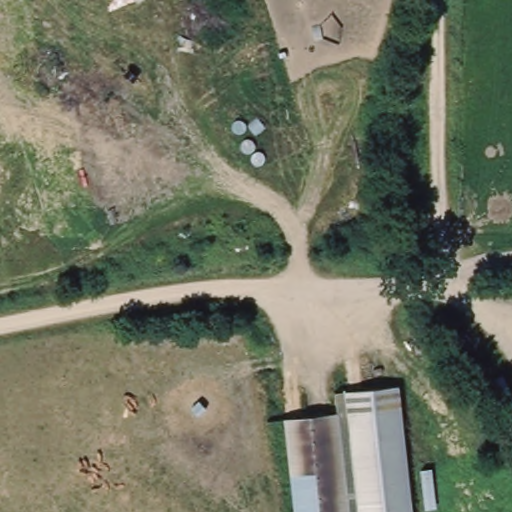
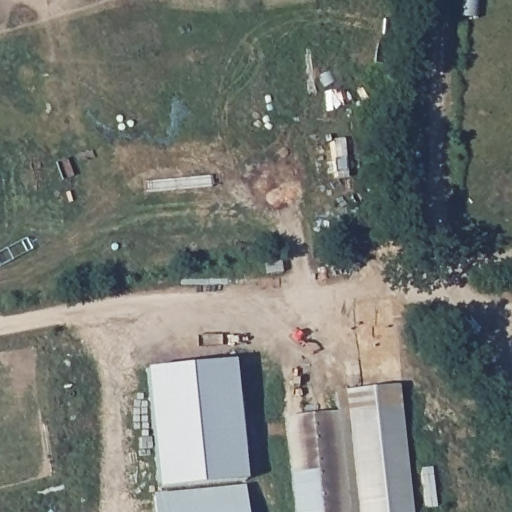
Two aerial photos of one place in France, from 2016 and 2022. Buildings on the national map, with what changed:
new [(233,360),(245,480),(159,488),(146,369),(233,360)]
unchanged [(321,409),(338,408),(337,398),(348,396),(399,390),(411,512),(295,512),(286,420),(321,416),(321,409)]

